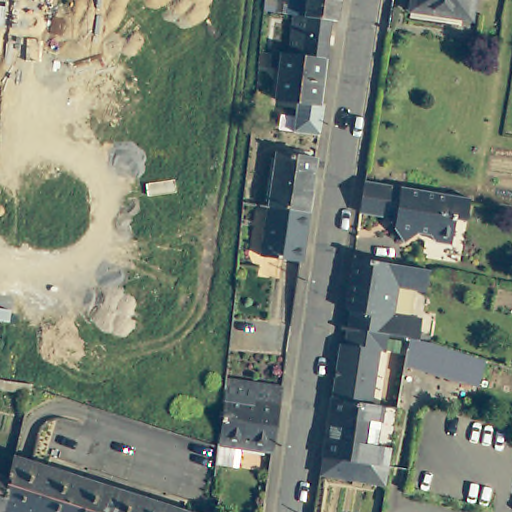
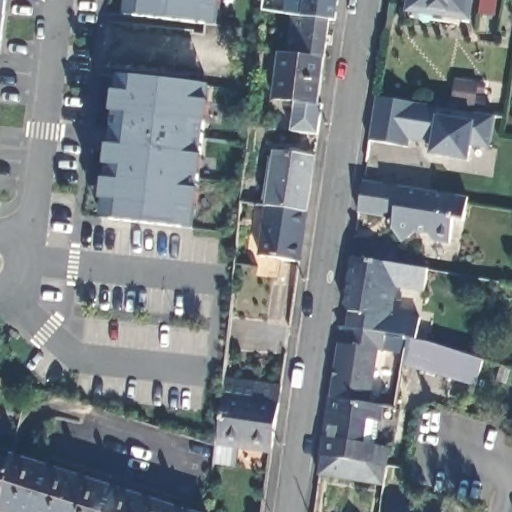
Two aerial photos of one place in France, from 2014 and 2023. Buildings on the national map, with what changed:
unchanged [(1,54),(0,54),(0,0),(6,0),(1,54)]
new [(126,0),(222,0),(219,24),(124,14),(126,0)]
unchanged [(304,15),(296,14),(298,0),(306,0),(339,0),(337,19),(328,18),(323,57),(318,104),(323,104),(320,133),(292,131),(295,101),(274,99),(280,54),(280,53),(299,55),(304,15)]
unchanged [(470,20),(409,12),(411,0),(473,0),(470,20)]
new [(197,230),(102,220),(117,76),(211,86),(197,230)]
new [(491,149),(472,147),(470,161),(431,155),(432,144),(411,142),(411,148),(369,143),(377,96),(497,117),(491,149)]
unchanged [(268,205),(276,152),(316,157),(307,211),(268,205)]
unchanged [(363,212),(368,180),(472,196),(468,220),(459,219),(454,241),(436,238),(431,233),(418,230),(405,239),(392,222),(387,216),(363,212)]
unchanged [(307,211),(301,262),(262,256),(268,205),(307,211)]
unchanged [(353,311),(349,304),(356,258),(436,270),(432,290),(403,286),(399,312),(428,316),(425,339),(412,336),(402,334),(361,327),(352,326),(353,311)]
unchanged [(361,327),(402,334),(412,336),(408,363),(402,399),(400,406),(387,404),(336,396),(346,326),(352,326),(361,327)]
unchanged [(442,343),(487,358),(480,382),(408,363),(412,336),(425,339),(442,343)]
unchanged [(216,463),(217,445),(217,443),(224,377),(282,384),(273,446),(272,452),(240,447),(238,467),(216,463)]
unchanged [(26,384),(24,391),(0,387),(0,379),(26,383),(26,384)]
unchanged [(390,480),(388,487),(357,482),(323,476),(327,454),(336,396),(387,404),(382,444),(390,446),(386,465),(392,466),(390,480)]
unchanged [(13,460),(15,455),(191,512),(14,512),(2,508),(13,460)]
unchanged [(0,508),(0,456),(13,460),(2,508),(0,508)]

